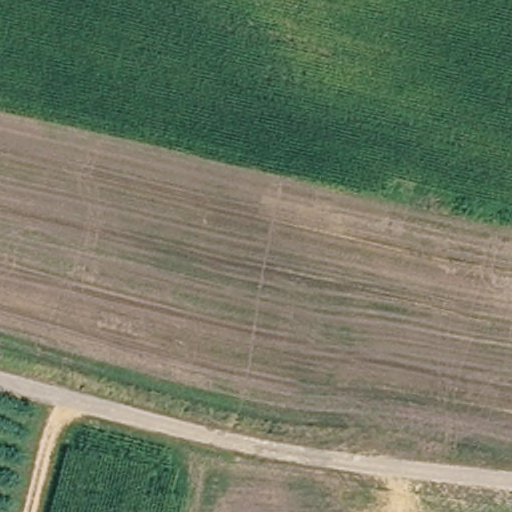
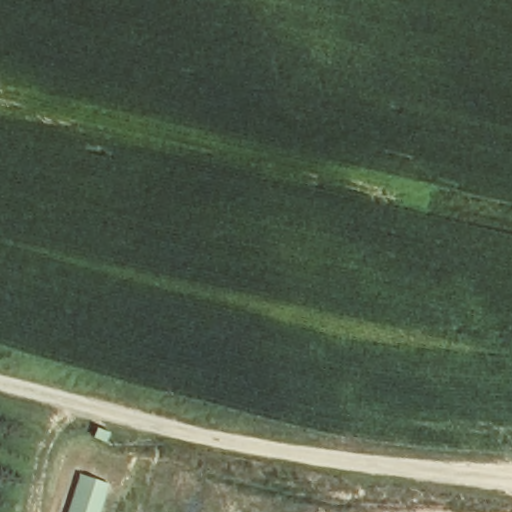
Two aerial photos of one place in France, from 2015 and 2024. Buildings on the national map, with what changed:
new [(100,512),(67,512),(80,473),(97,479),(110,483),(100,512)]

